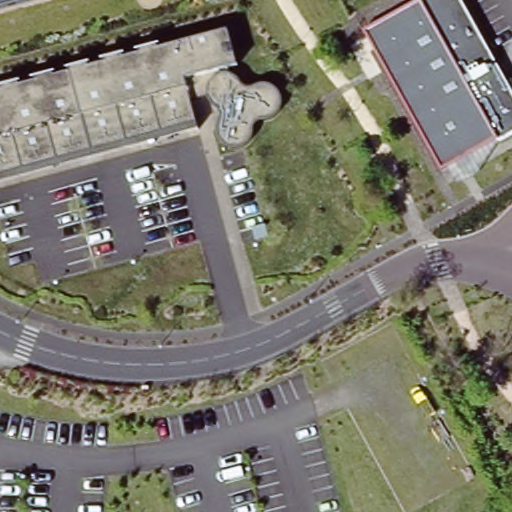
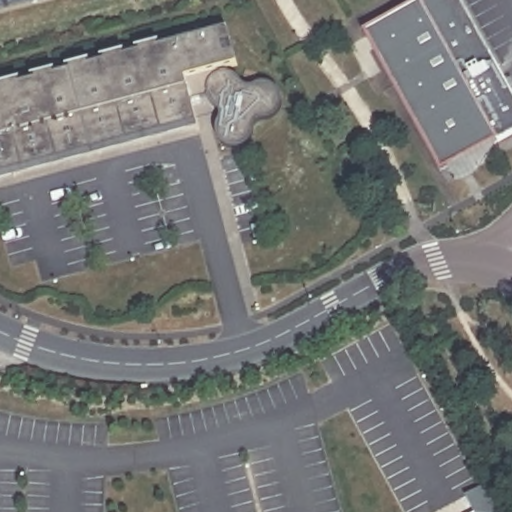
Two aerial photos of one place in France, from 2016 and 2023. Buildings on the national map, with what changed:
unchanged [(0,8),(0,0),(28,0),(0,8)]
unchanged [(512,95),(512,132),(495,140),(440,168),(365,32),(420,1),(419,0),(460,0),(512,95)]
unchanged [(225,33),(236,67),(227,79),(237,86),(243,92),(252,90),(258,89),(272,90),(277,97),(279,104),(278,112),(275,117),(268,121),(260,122),(255,124),(249,126),(248,133),(247,139),(240,145),(233,149),(227,148),(220,146),(215,139),(216,131),(219,125),(220,119),(218,115),(215,111),(208,108),(203,103),(202,98),(183,101),(193,132),(0,186),(0,94),(225,33)]

